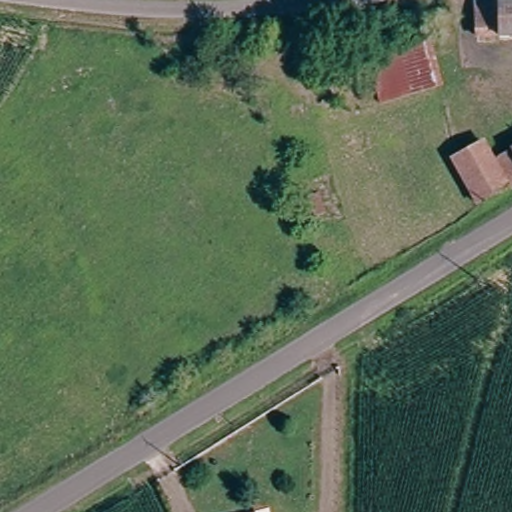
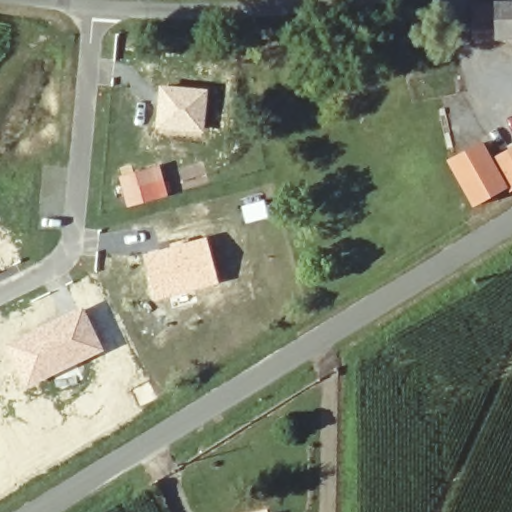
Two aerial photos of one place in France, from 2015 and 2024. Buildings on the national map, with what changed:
unchanged [(473,39),(471,4),(512,1),(512,37),(473,39)]
new [(158,84),(207,89),(203,134),(154,129),(158,84)]
unchanged [(506,189),(503,184),(472,202),(447,161),(478,142),(488,160),(512,147),(512,185),(506,189)]
new [(159,164),(168,195),(126,207),(118,175),(159,164)]
new [(206,236),(218,283),(151,299),(141,254),(206,236)]
new [(82,305),(104,350),(20,390),(4,345),(82,305)]

